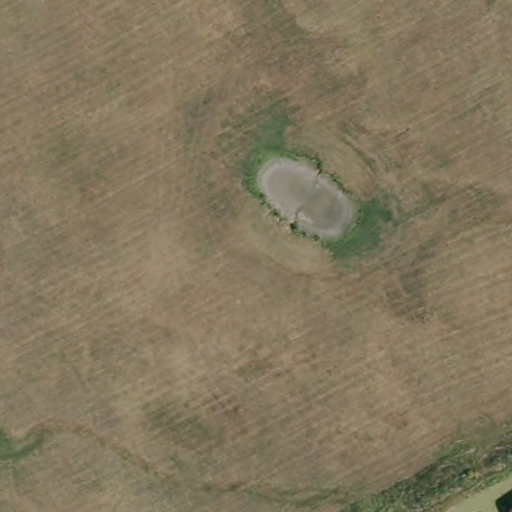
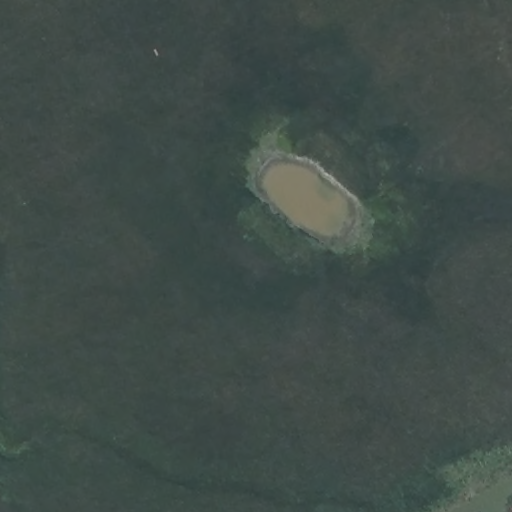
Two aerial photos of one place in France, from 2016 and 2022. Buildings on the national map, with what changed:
unchanged [(511,505),(512,505),(512,507),(511,505)]

